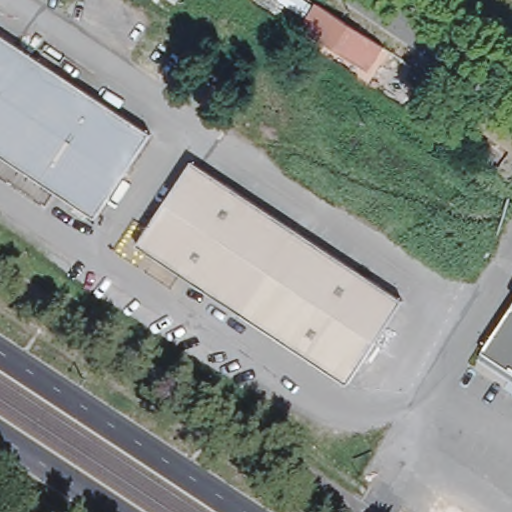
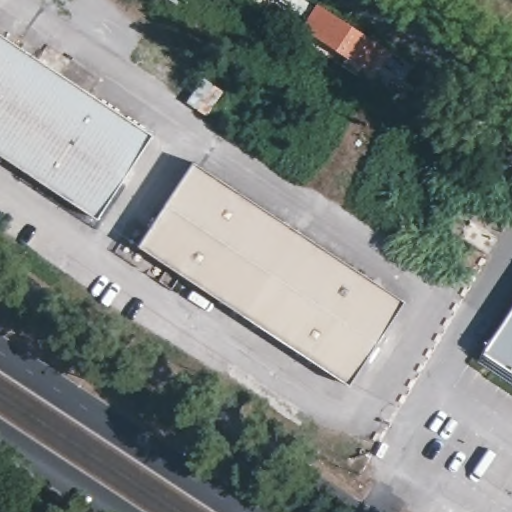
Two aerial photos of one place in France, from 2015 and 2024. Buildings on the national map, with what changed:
unchanged [(156,1),(156,0),(178,0),(173,13),(156,1)]
unchanged [(384,44),(369,68),(306,26),(320,3),(384,44)]
unchanged [(156,134),(100,218),(0,152),(0,32),(156,134)]
unchanged [(498,168),(509,150),(476,125),(485,112),(512,132),(512,178),(498,168)]
unchanged [(403,299),(347,384),(138,247),(193,161),(403,299)]
unchanged [(512,305),(512,371),(482,351),(512,305)]

